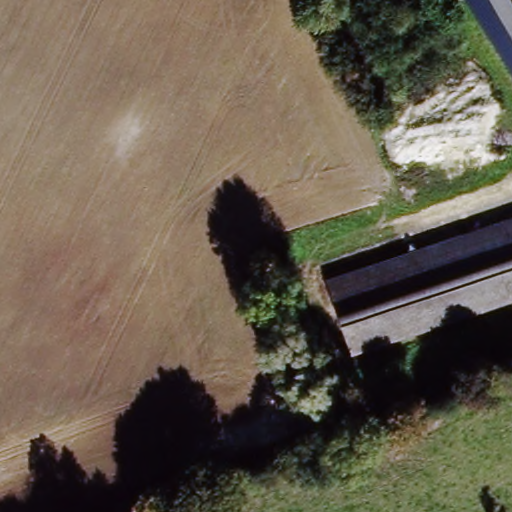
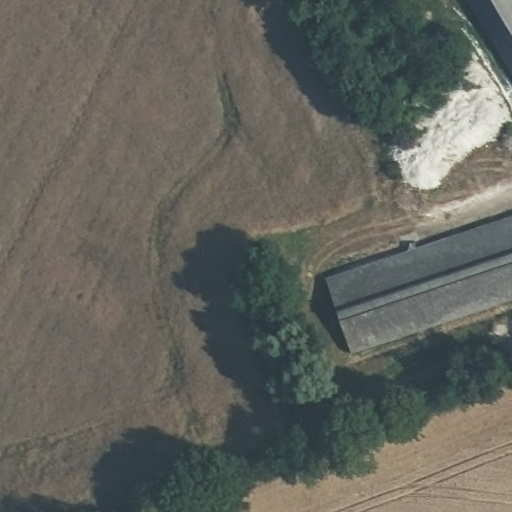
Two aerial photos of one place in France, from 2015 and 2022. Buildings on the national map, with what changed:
unchanged [(468,0),(512,0),(512,71),(468,0)]
unchanged [(512,228),(512,306),(357,357),(335,287),(512,228)]

